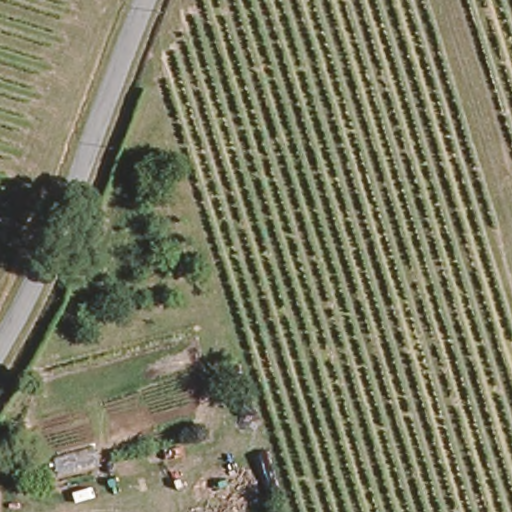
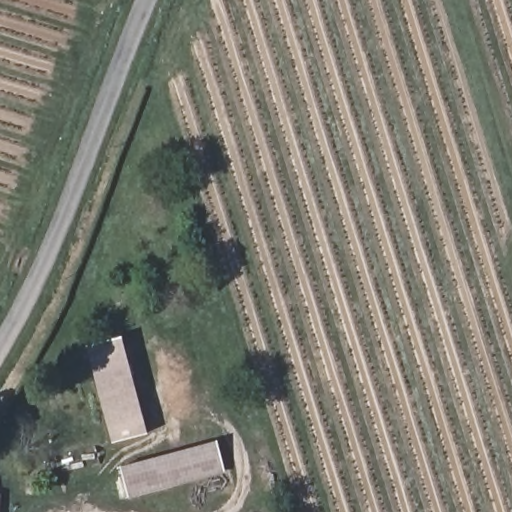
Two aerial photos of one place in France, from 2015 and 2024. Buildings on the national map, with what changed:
new [(86,345),(121,336),(148,434),(111,442),(86,345)]
new [(127,498),(119,466),(217,440),(225,472),(127,498)]

